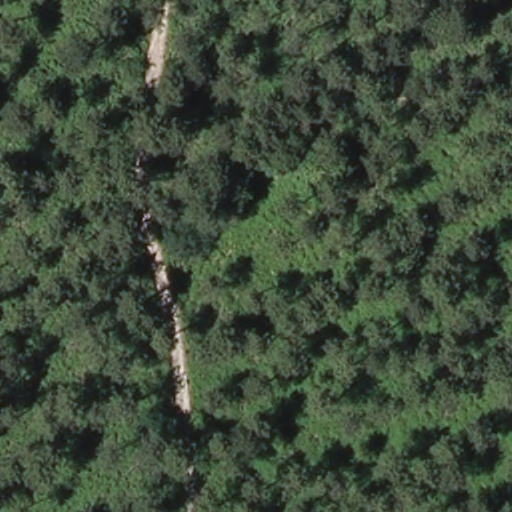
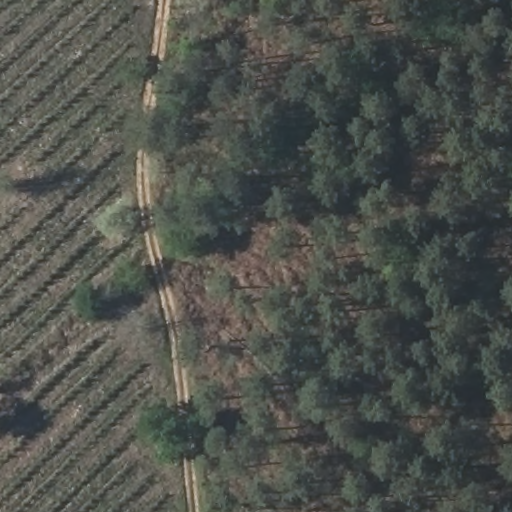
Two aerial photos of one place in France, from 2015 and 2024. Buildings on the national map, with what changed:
[]

